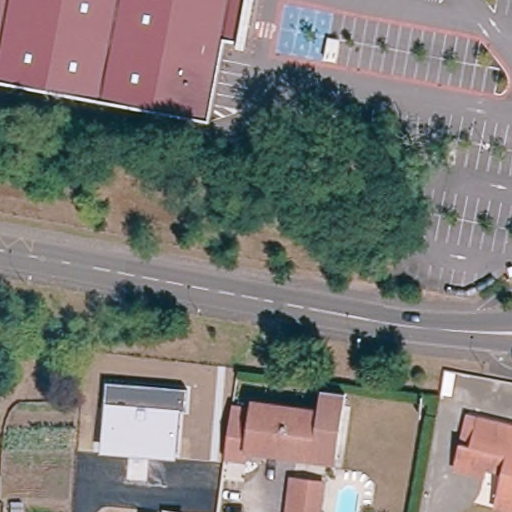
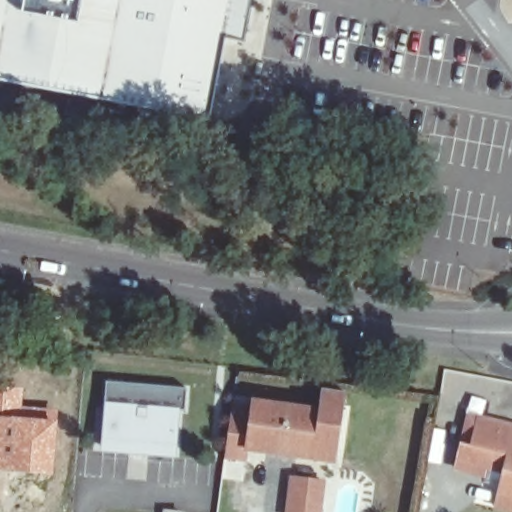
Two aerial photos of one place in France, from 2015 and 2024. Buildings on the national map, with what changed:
unchanged [(245,42),(225,39),(211,118),(0,79),(0,0),(253,0),(245,42)]
unchanged [(107,383),(186,390),(184,410),(180,409),(176,459),(101,452),(107,383)]
new [(22,406),(57,408),(53,476),(0,471),(0,386),(22,387),(22,406)]
unchanged [(244,452),(243,460),(223,458),(226,438),(231,408),(249,410),(250,403),(322,412),(324,392),(344,394),(336,459),(336,464),(318,461),(244,452)]
unchanged [(503,491),(512,454),(493,450),(488,474),(458,468),(464,443),(473,445),(480,419),(511,425),(512,425),(512,509),(500,506),(503,491)]
unchanged [(323,512),(290,512),(297,479),(328,484),(323,512)]

